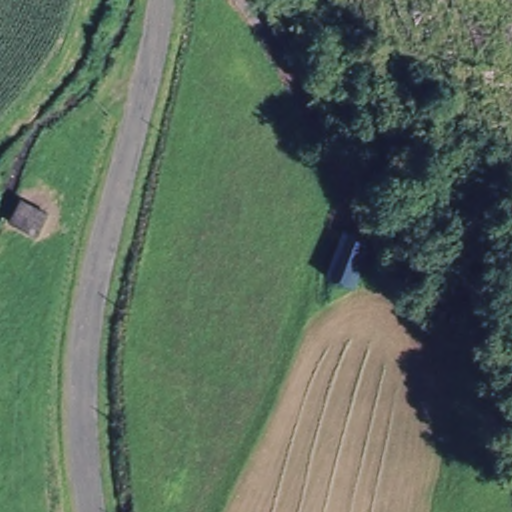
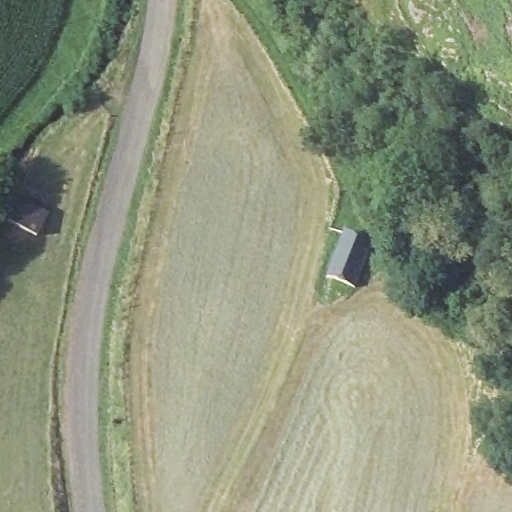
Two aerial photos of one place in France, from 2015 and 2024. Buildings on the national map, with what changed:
unchanged [(368,249),(367,253),(355,290),(322,276),(337,238),(340,232),(347,234),(371,241),(368,249)]

